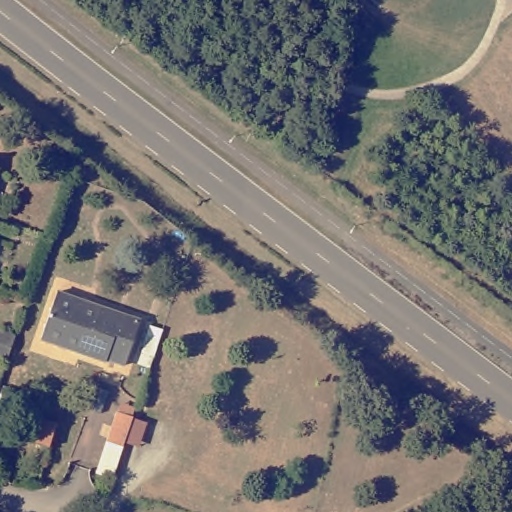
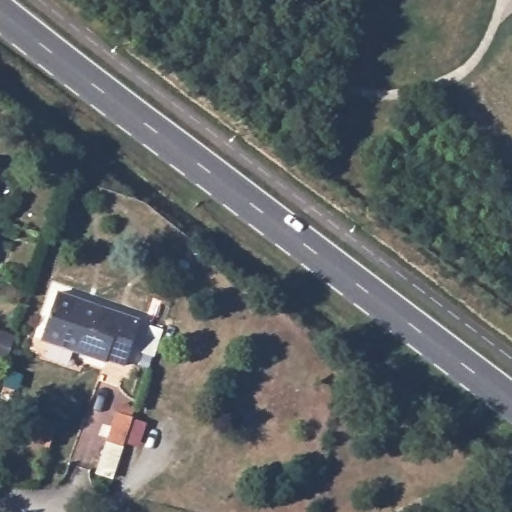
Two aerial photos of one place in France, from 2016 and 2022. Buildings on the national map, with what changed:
unchanged [(0,284),(0,272),(4,273),(0,284)]
unchanged [(59,291),(144,320),(128,365),(109,357),(108,361),(43,338),(59,291)]
unchanged [(11,349),(6,362),(0,359),(0,330),(16,335),(11,349)]
unchanged [(111,435),(121,407),(126,395),(140,401),(136,412),(125,441),(111,435)]
unchanged [(34,443),(42,418),(58,423),(50,448),(34,443)]

